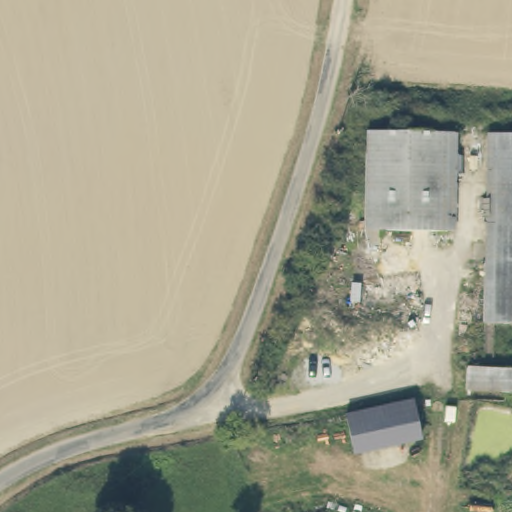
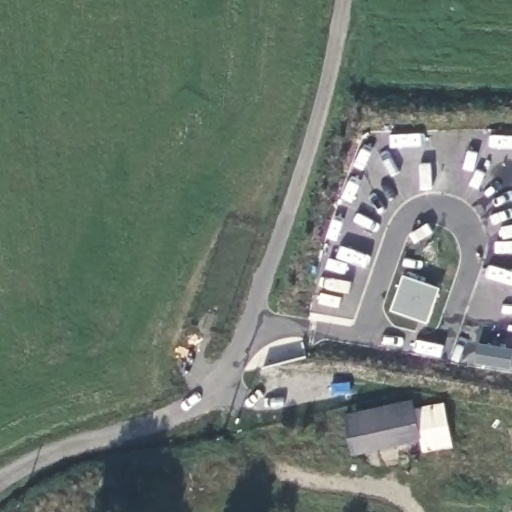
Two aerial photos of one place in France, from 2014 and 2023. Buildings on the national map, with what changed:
demolished [(458,132),(457,181),(470,181),(469,196),(469,202),(456,201),(456,231),(381,229),(381,242),(367,241),(369,130),(458,132)]
demolished [(488,181),(489,133),(512,133),(512,322),(485,321),(487,202),(469,202),(469,196),(470,181),(488,181)]
new [(428,323),(391,311),(403,275),(440,287),(428,323)]
demolished [(512,368),(512,392),(465,389),(466,366),(512,368)]
unchanged [(411,398),(422,435),(355,454),(345,418),(411,398)]

